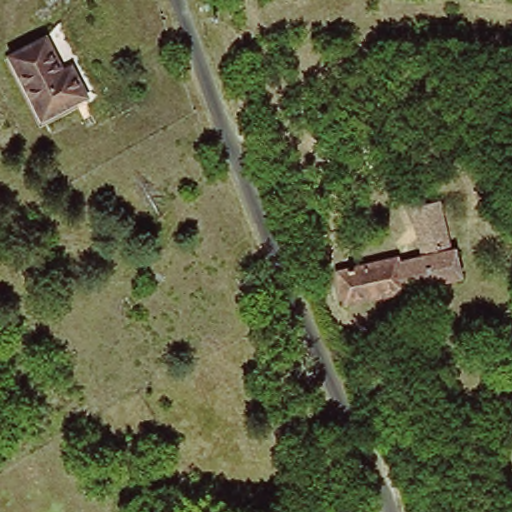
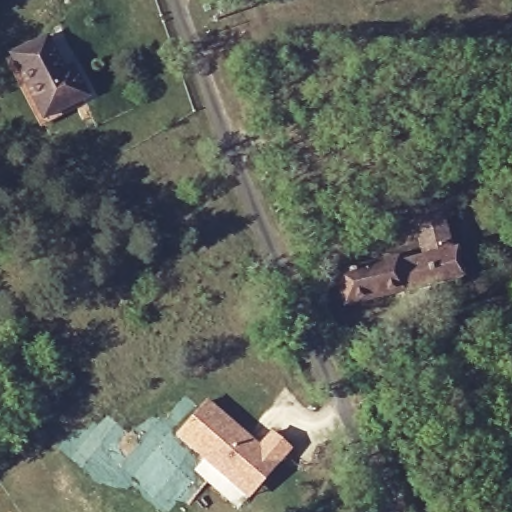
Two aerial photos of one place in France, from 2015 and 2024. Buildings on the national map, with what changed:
unchanged [(41,118),(11,56),(46,39),(64,73),(73,68),(86,95),(41,118)]
unchanged [(412,205),(439,202),(452,250),(426,257),(412,205)]
unchanged [(385,268),(426,257),(452,250),(462,282),(345,308),(337,274),(381,262),(385,268)]
new [(175,436),(205,401),(258,446),(270,432),(290,451),(248,499),(175,436)]

